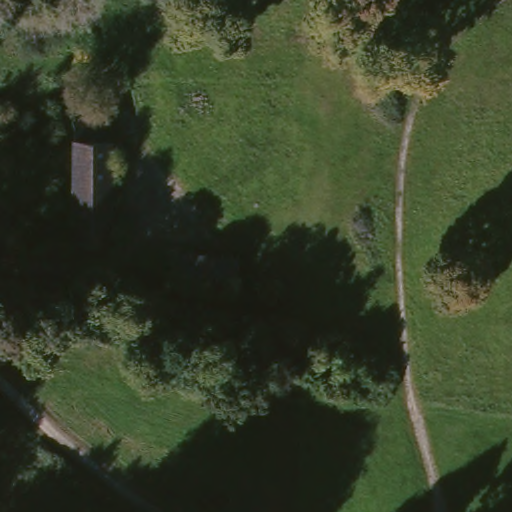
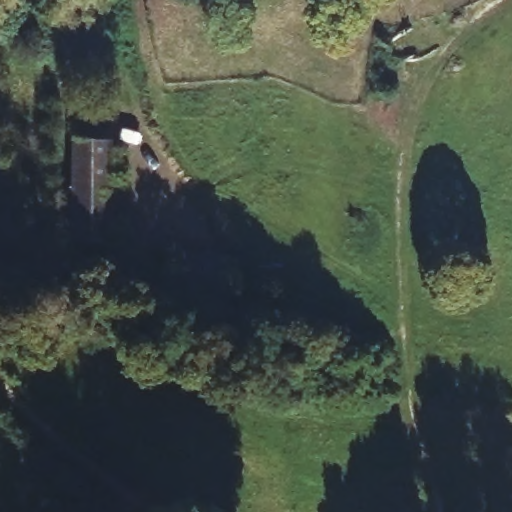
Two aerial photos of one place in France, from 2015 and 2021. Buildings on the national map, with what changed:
unchanged [(116,121),(116,146),(113,248),(78,245),(83,119),(116,121)]
unchanged [(235,295),(174,290),(176,254),(239,257),(235,295)]

